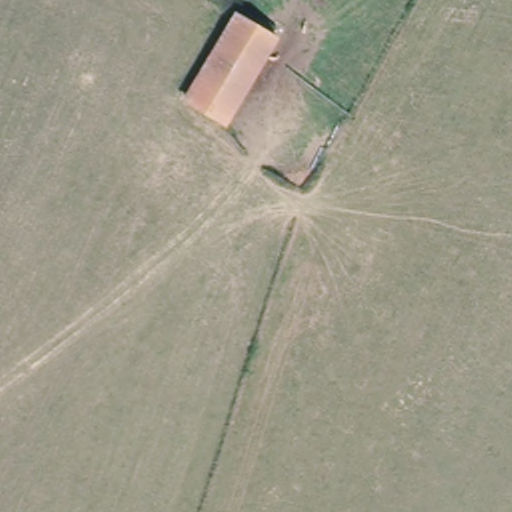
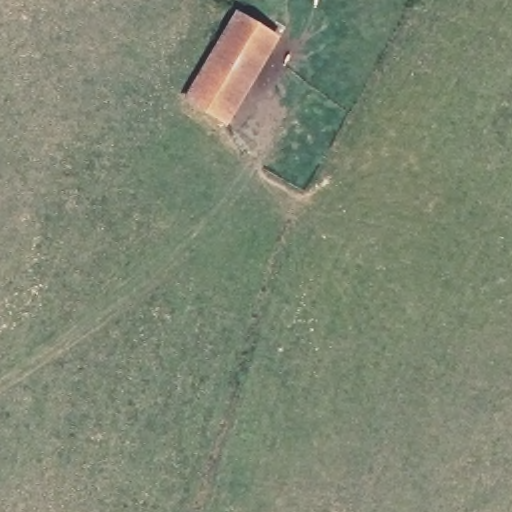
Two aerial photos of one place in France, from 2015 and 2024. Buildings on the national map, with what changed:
unchanged [(231,7),(279,33),(227,123),(179,96),(231,7)]

